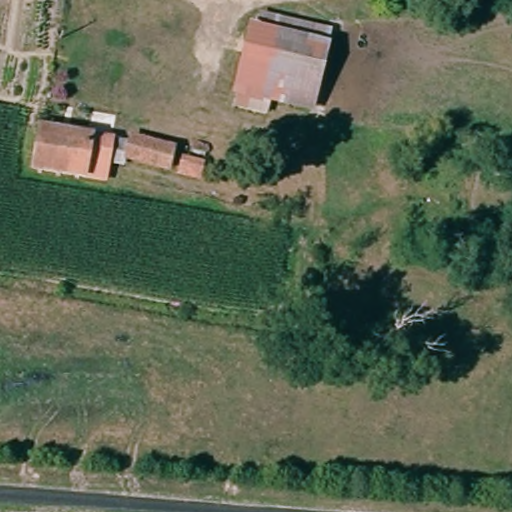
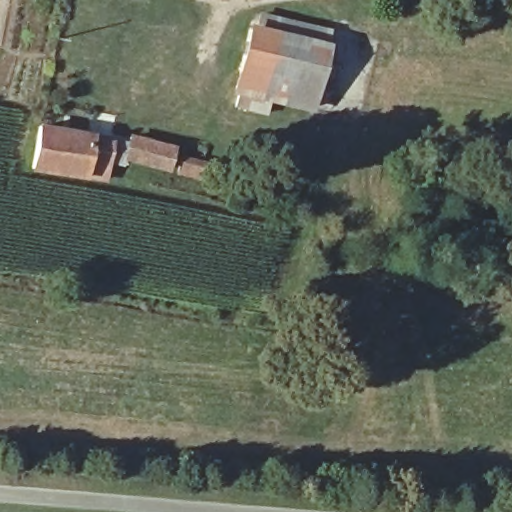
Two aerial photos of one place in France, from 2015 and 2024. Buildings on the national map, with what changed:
unchanged [(323,39),(311,92),(310,92),(276,84),(270,106),(231,98),(245,36),(252,37),(255,22),(323,39)]
unchanged [(83,179),(29,172),(37,122),(87,132),(109,138),(125,142),(126,134),(171,146),(167,172),(120,161),(120,167),(107,164),(102,182),(83,179)]
unchanged [(202,163),(199,174),(179,169),(181,158),(202,163)]

